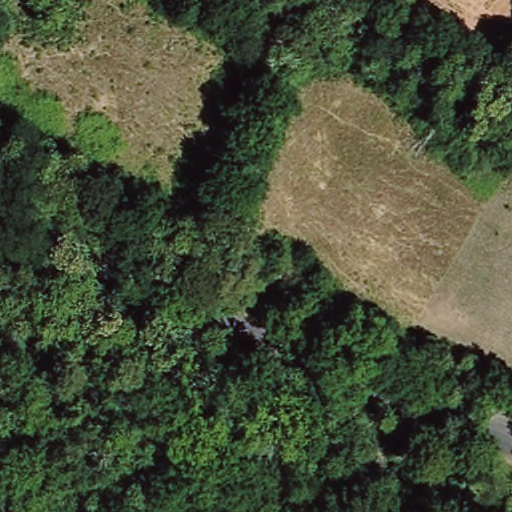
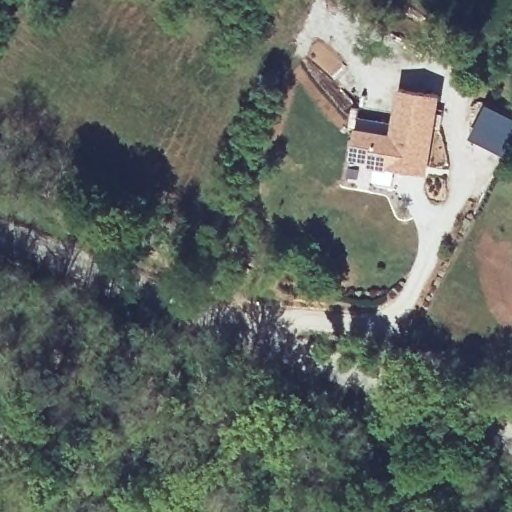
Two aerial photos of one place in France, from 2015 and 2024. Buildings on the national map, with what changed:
new [(375,182),(377,167),(371,166),(371,161),(353,158),(357,130),(360,119),(396,125),(402,89),(441,96),(431,153),(427,176),(415,174),(397,171),(395,185),(375,182)]

